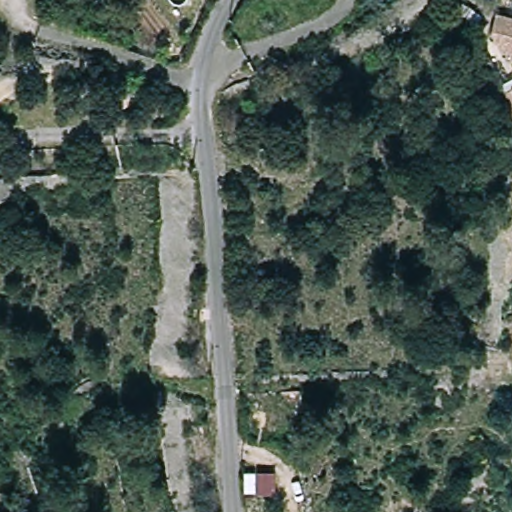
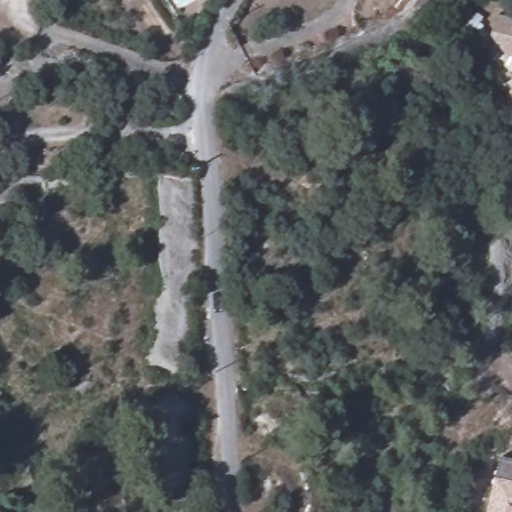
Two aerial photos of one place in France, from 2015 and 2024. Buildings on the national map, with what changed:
unchanged [(492,42),(499,17),(512,21),(512,61),(509,60),(492,42)]
unchanged [(512,89),(512,112),(503,95),(512,89)]
new [(500,455),(512,458),(512,512),(489,512),(500,455)]

